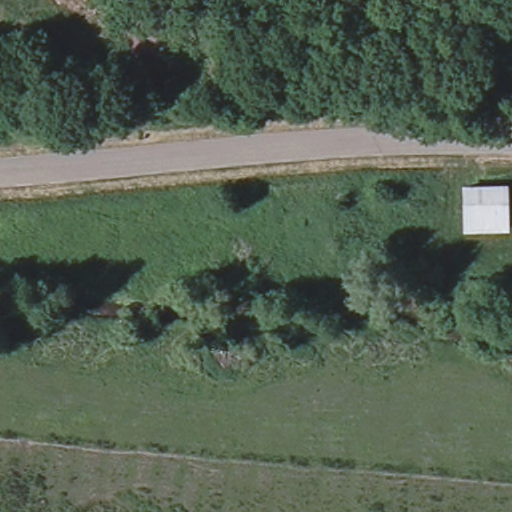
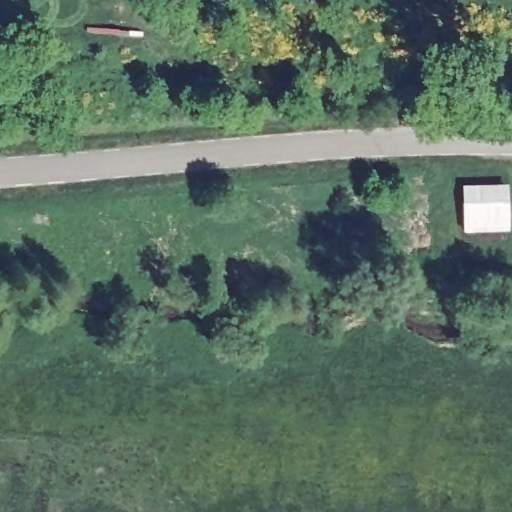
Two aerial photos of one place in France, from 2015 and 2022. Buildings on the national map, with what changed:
unchanged [(508,182),(511,228),(463,230),(461,184),(508,182)]

